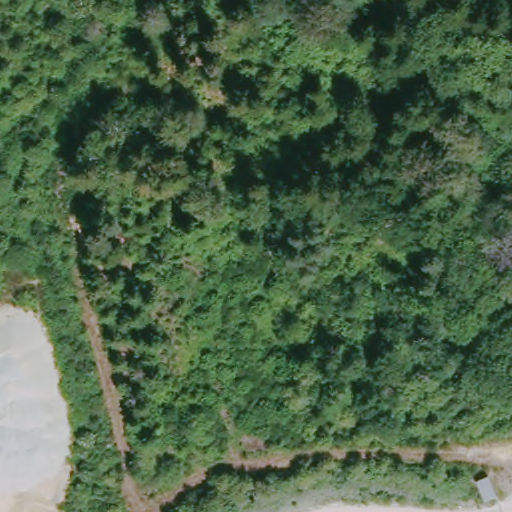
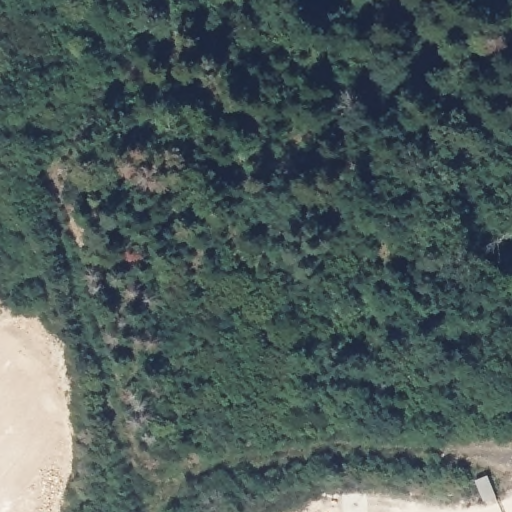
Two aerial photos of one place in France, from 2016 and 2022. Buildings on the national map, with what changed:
unchanged [(473,480),(487,474),(495,494),(482,500),(473,480)]

